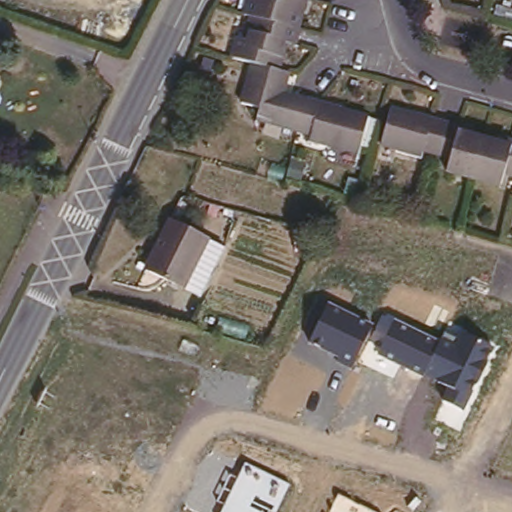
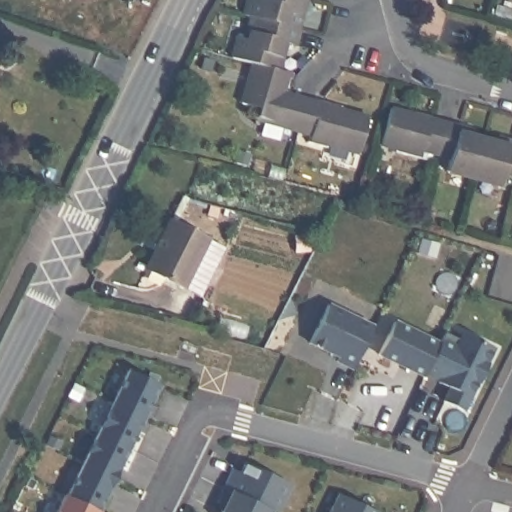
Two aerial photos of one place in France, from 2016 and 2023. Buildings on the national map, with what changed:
unchanged [(299,21),(305,23),(299,45),(286,42),(279,67),(288,70),(280,97),(291,101),(293,91),(344,102),(342,110),(369,117),(361,150),(331,142),(329,151),(309,147),(311,137),(281,132),(283,123),(255,117),(258,108),(240,104),(252,60),(231,55),(239,30),(247,32),(254,9),(244,7),(247,0),(305,0),(299,21)]
unchanged [(417,108),(474,124),(470,135),(504,143),(506,135),(512,137),(512,176),(504,175),(500,189),(448,176),(453,157),(420,149),(416,159),(398,154),(400,147),(378,141),(388,104),(416,112),(417,108)]
unchanged [(213,240),(189,289),(136,264),(158,217),(213,240)]
unchanged [(308,342),(328,302),(374,326),(356,367),(308,342)]
unchanged [(439,400),(446,387),(376,355),(392,320),(438,341),(447,327),(494,350),(462,412),(439,400)]
new [(128,371),(159,386),(143,418),(112,402),(128,371)]
new [(112,402),(143,418),(128,449),(97,434),(112,402)]
new [(97,434),(128,449),(113,481),(82,465),(97,434)]
unchanged [(217,502),(230,474),(237,477),(244,463),(291,485),(277,512),(271,512),(269,512),(221,512),(224,506),(217,502)]
new [(82,465),(113,481),(98,512),(66,497),(82,465)]
unchanged [(375,512),(330,512),(338,495),(375,512)]
new [(98,512),(56,512),(64,496),(98,512)]

